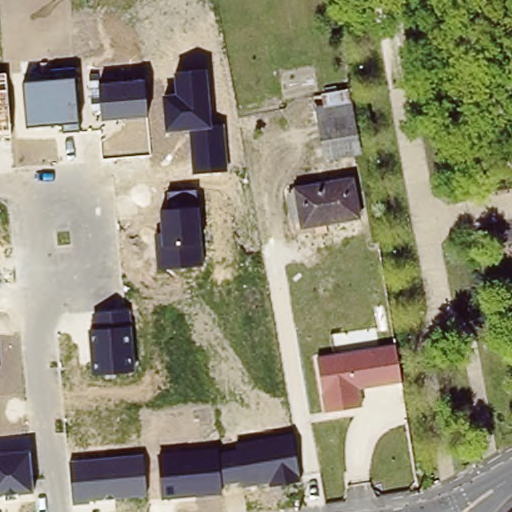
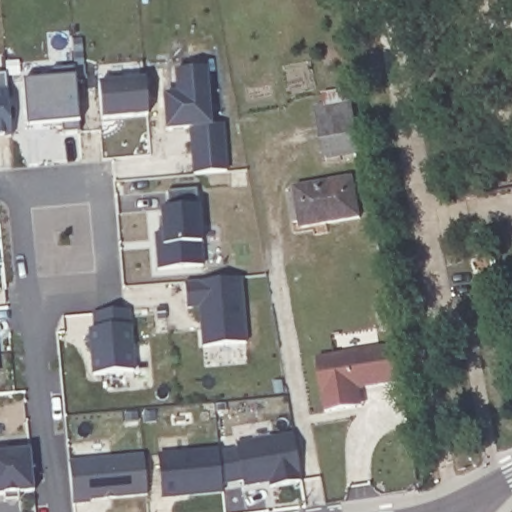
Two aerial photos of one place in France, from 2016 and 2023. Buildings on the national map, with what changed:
unchanged [(162,96),(175,94),(172,74),(208,70),(214,126),(225,125),(229,170),(194,173),(192,130),(165,133),(162,96)]
unchanged [(6,73),(12,136),(0,137),(0,74),(6,73)]
unchanged [(24,83),(75,80),(79,131),(64,132),(63,123),(27,127),(24,83)]
unchanged [(99,85),(145,80),(147,115),(102,120),(99,85)]
unchanged [(350,100),(357,152),(330,156),(324,157),(316,106),(323,105),(350,100)]
unchanged [(300,220),(291,221),(286,192),(294,191),(294,186),(335,180),(350,177),(357,216),(340,220),(300,226),(300,220)]
unchanged [(155,234),(161,232),(159,210),(168,210),(167,192),(198,190),(205,267),(157,271),(155,234)]
new [(241,277),(247,352),(204,356),(197,281),(241,277)]
unchanged [(89,330),(95,329),(93,313),(131,310),(137,371),(92,375),(89,330)]
unchanged [(317,357),(395,345),(400,382),(360,388),(364,407),(326,413),(317,357)]
unchanged [(158,454),(213,448),(295,434),(302,480),(270,486),(269,481),(242,486),(240,481),(221,484),(222,494),(162,500),(158,454)]
unchanged [(29,451),(32,495),(0,497),(0,454),(29,451)]
unchanged [(70,461),(143,453),(145,495),(74,505),(70,461)]

